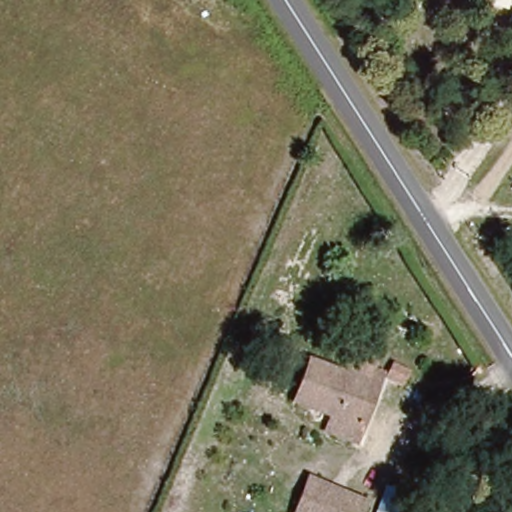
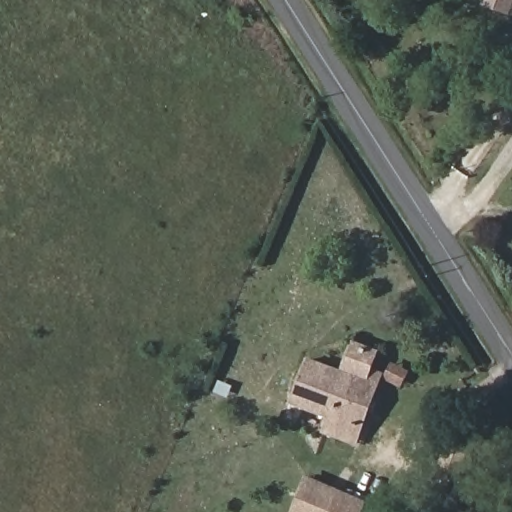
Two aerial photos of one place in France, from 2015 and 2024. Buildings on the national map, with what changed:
unchanged [(363,431),(356,446),(327,433),(332,420),(294,403),(311,365),(348,382),(359,357),(379,366),(368,391),(378,395),(363,431)]
unchanged [(363,512),(295,512),(309,482),(366,506),(363,512)]

